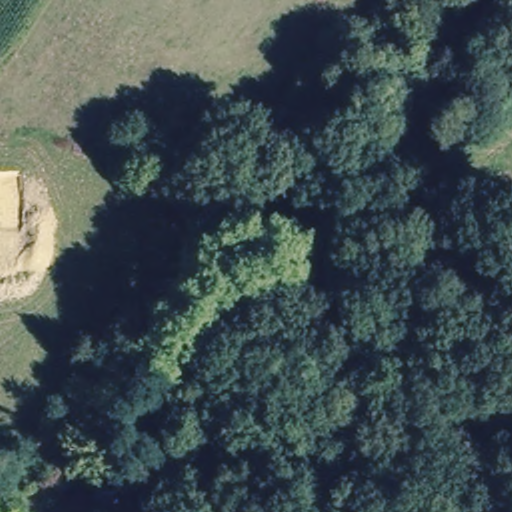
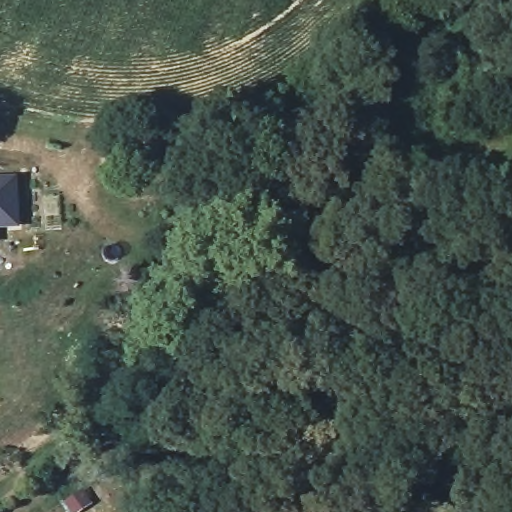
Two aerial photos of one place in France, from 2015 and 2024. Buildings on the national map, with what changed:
new [(14,230),(0,230),(0,186),(14,186),(14,230)]

